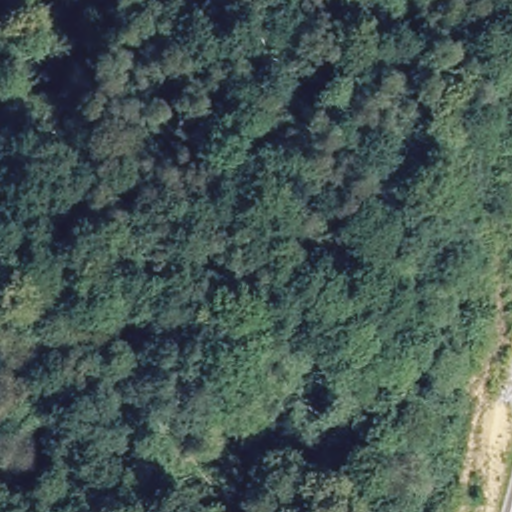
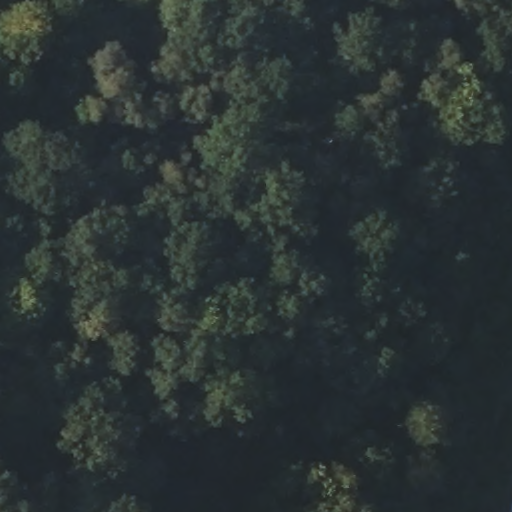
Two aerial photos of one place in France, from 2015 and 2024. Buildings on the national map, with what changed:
[]

